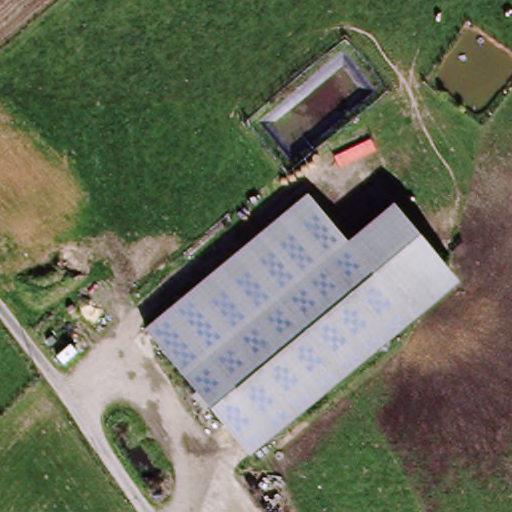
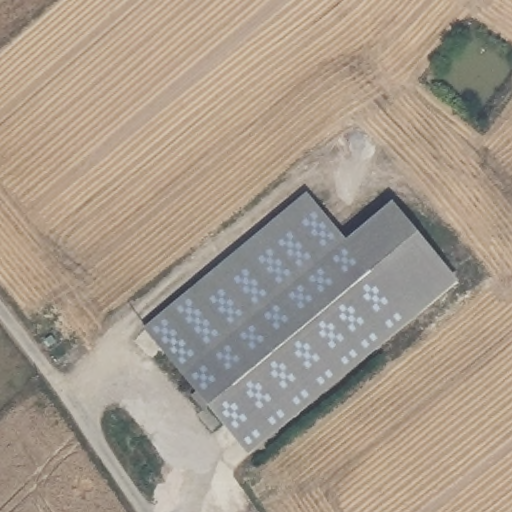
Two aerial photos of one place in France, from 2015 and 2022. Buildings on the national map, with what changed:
unchanged [(309,194),(349,241),(395,203),(459,282),(250,455),(146,328),(309,194)]

